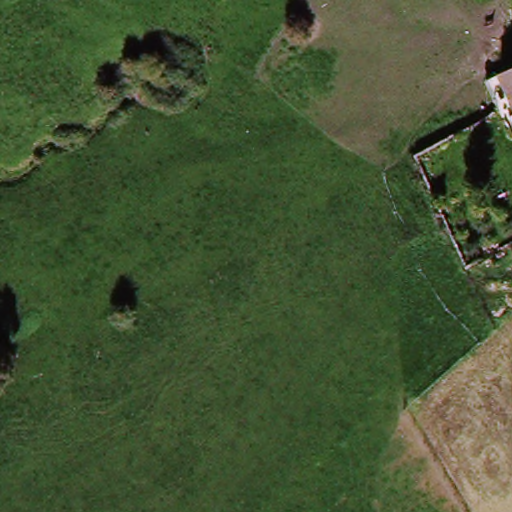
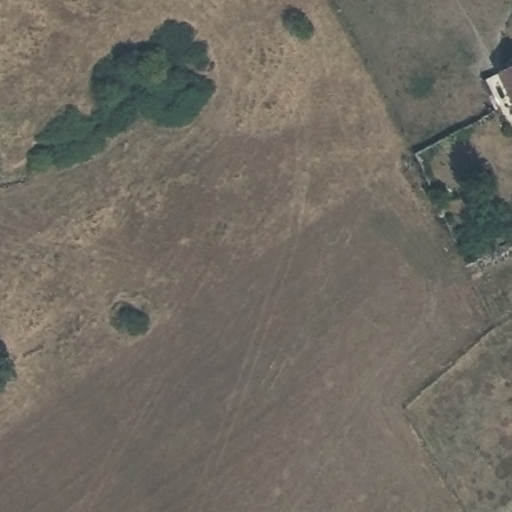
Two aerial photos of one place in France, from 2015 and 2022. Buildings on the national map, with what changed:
unchanged [(509,104),(502,107),(495,89),(502,87),(497,77),(512,71),(512,110),(509,104)]

